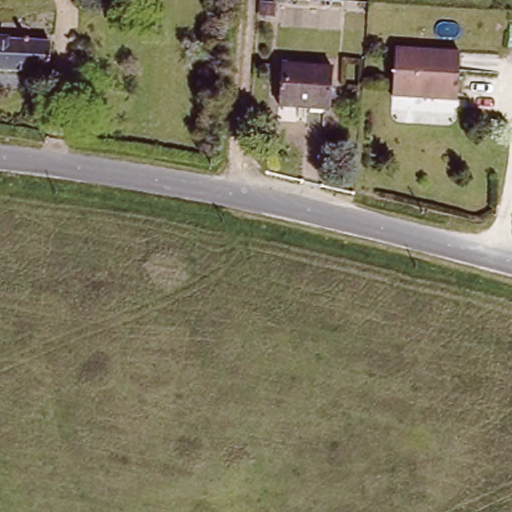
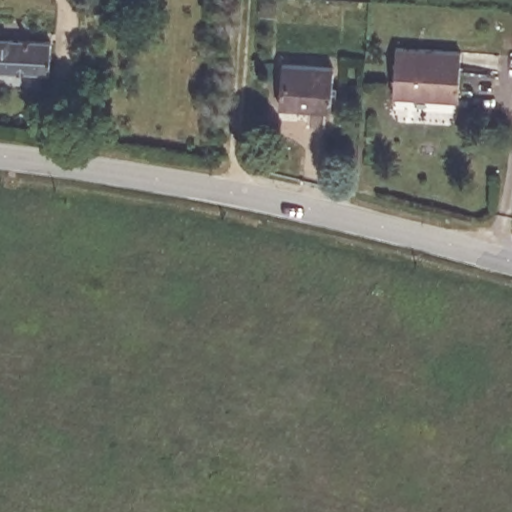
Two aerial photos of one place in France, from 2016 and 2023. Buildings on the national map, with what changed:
unchanged [(277,0),(277,14),(265,14),(265,0),(277,0)]
unchanged [(66,43),(65,66),(52,66),(52,74),(0,71),(0,39),(66,43)]
unchanged [(464,52),(460,100),(395,95),(400,47),(464,52)]
unchanged [(329,63),(325,99),(275,94),(280,57),(329,63)]

